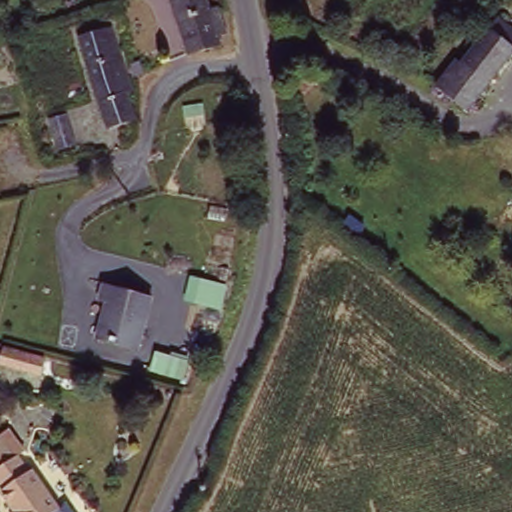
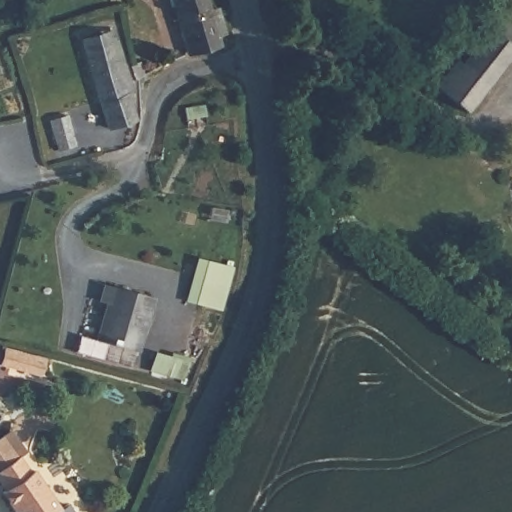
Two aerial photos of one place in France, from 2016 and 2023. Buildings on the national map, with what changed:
unchanged [(217,34),(212,35),(214,45),(183,51),(170,0),(201,0),(204,13),(214,10),(217,34)]
unchanged [(458,62),(467,68),(509,23),(512,26),(512,66),(464,112),(438,90),(434,86),(458,62)]
unchanged [(132,94),(126,96),(135,122),(102,132),(75,39),(109,26),(132,94)]
unchanged [(66,118),(77,148),(61,154),(50,123),(66,118)]
new [(234,265),(223,311),(185,300),(196,254),(234,265)]
unchanged [(105,305),(98,303),(102,287),(150,299),(136,353),(95,342),(105,305)]
unchanged [(49,352),(46,374),(2,365),(6,346),(49,352)]
unchanged [(160,355),(189,363),(185,380),(156,371),(160,355)]
unchanged [(56,512),(17,512),(8,499),(13,495),(0,481),(0,471),(22,451),(35,468),(65,504),(56,512)]

